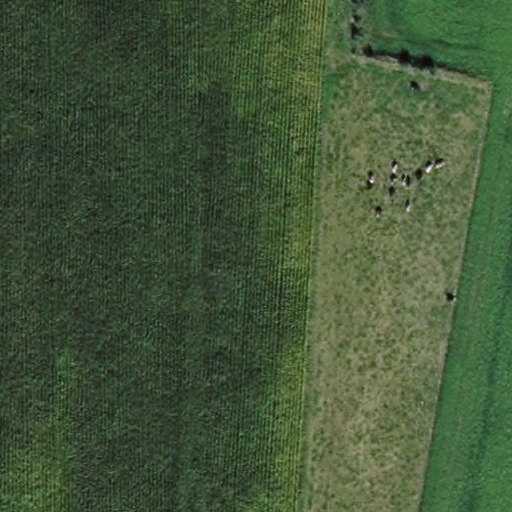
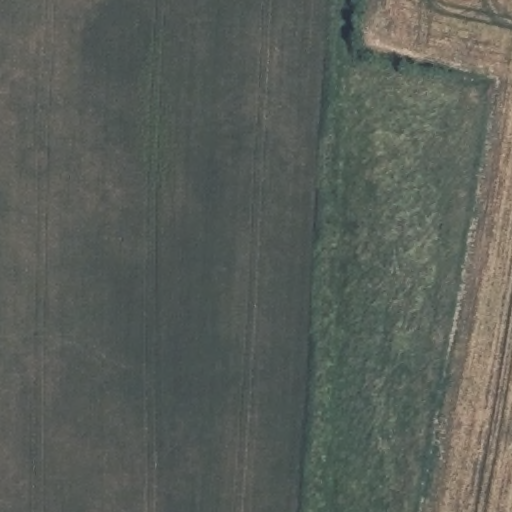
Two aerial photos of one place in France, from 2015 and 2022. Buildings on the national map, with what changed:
[]

